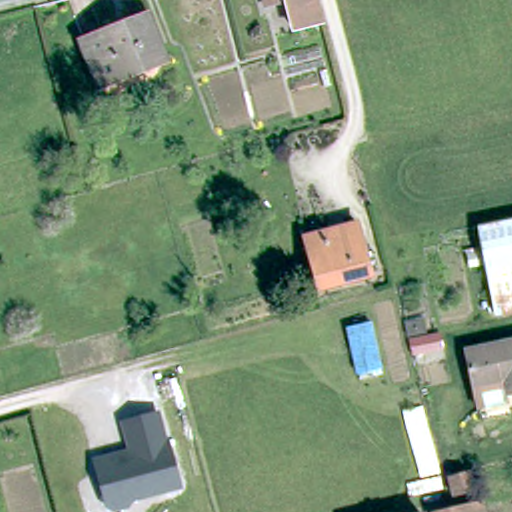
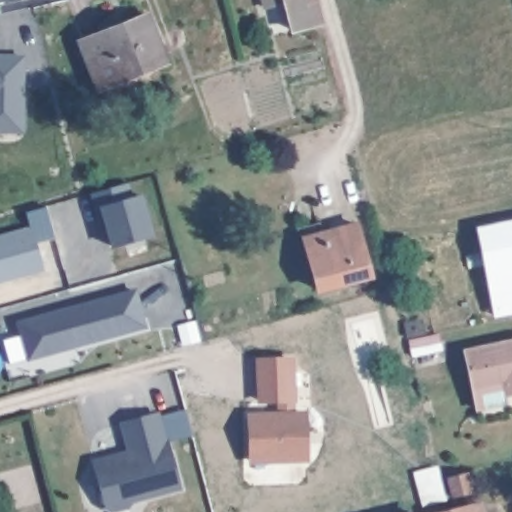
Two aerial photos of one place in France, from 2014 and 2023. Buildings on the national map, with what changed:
unchanged [(286,2),(264,8),(262,0),(318,0),(323,22),(293,28),(286,2)]
unchanged [(148,18),(163,60),(99,84),(83,42),(148,18)]
new [(22,131),(0,130),(0,56),(23,57),(22,131)]
new [(98,209),(93,192),(128,182),(133,197),(142,194),(154,233),(114,245),(108,221),(103,222),(98,209)]
new [(28,212),(48,206),(56,236),(37,241),(45,268),(0,282),(0,237),(32,228),(28,212)]
unchanged [(512,220),(512,312),(501,315),(483,226),(512,220)]
unchanged [(317,288),(307,252),(304,239),(357,224),(361,237),(371,273),(317,288)]
new [(30,361),(20,325),(137,295),(146,330),(78,348),(65,351),(30,361)]
unchanged [(416,343),(442,337),(447,360),(421,366),(416,343)]
unchanged [(504,382),(476,389),(468,351),(512,341),(512,393),(507,394),(504,382)]
new [(258,406),(256,358),(295,356),(296,404),(258,406)]
new [(309,461),(249,463),(247,412),(307,409),(309,461)]
unchanged [(161,411),(166,439),(170,438),(181,492),(132,505),(131,510),(118,512),(111,512),(105,510),(93,457),(128,447),(123,421),(161,411)]
unchanged [(451,478),(469,474),(472,491),(454,495),(451,478)]
unchanged [(435,510),(482,499),(485,512),(435,512),(435,510)]

